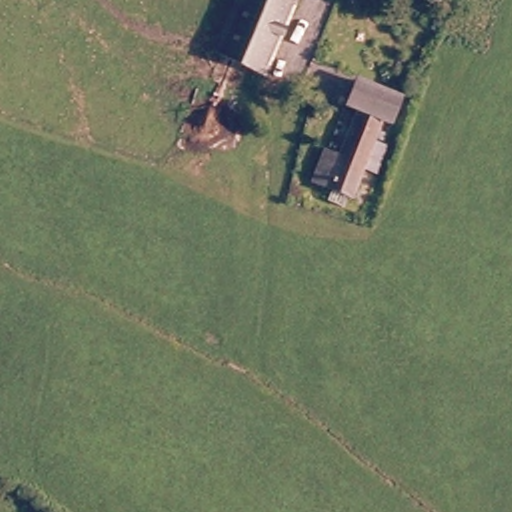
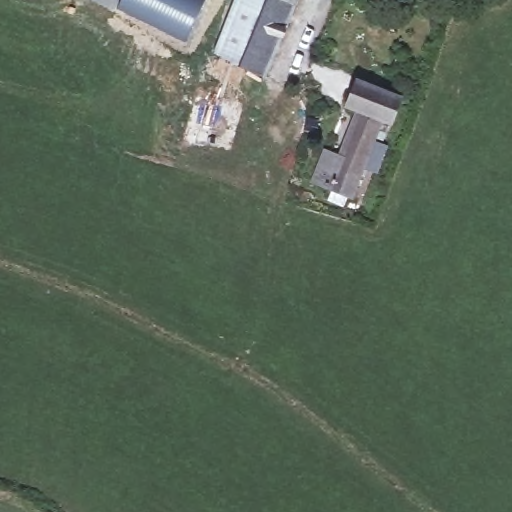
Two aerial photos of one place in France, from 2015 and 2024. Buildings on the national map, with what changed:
new [(206,0),(186,42),(116,8),(120,0),(206,0)]
unchanged [(217,44),(235,0),(294,0),(265,69),(217,44)]
unchanged [(312,180),(319,163),(324,148),(341,155),(351,131),(356,120),(360,110),(352,106),(362,79),(390,87),(403,94),(394,120),(386,116),(357,194),(312,180)]

